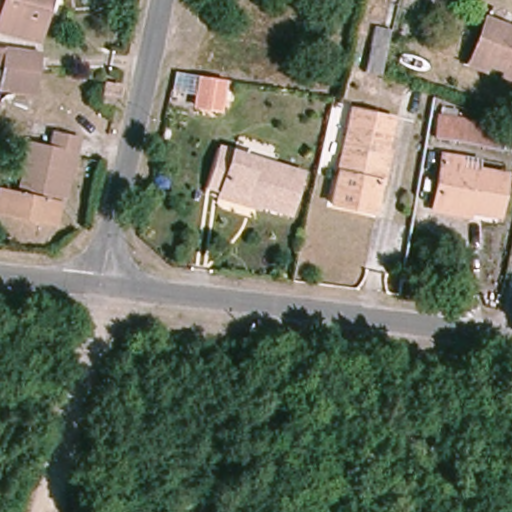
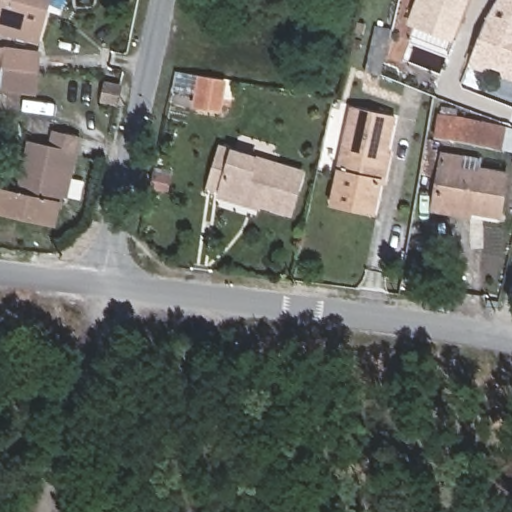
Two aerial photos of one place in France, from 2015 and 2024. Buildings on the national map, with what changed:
unchanged [(0,32),(0,13),(3,2),(0,2),(0,0),(51,0),(48,9),(39,42),(0,32)]
new [(415,0),(469,0),(453,41),(406,23),(415,0)]
new [(485,18),(497,0),(512,0),(512,28),(486,18),(485,18)]
unchanged [(506,71),(488,64),(485,70),(469,63),(486,18),(512,28),(512,78),(504,75),(506,71)]
unchanged [(374,33),(391,38),(381,75),(365,72),(374,33)]
unchanged [(0,87),(0,82),(2,68),(0,68),(0,51),(43,57),(40,74),(38,93),(0,87)]
unchanged [(198,75),(199,76),(223,80),(218,108),(193,104),(198,75)]
unchanged [(100,99),(104,82),(119,85),(117,101),(100,99)]
unchanged [(384,182),(381,181),(375,213),(332,204),(339,169),(352,109),(395,118),(387,151),(390,151),(384,182)]
unchanged [(444,138),(448,113),(466,116),(512,125),(512,150),(478,143),(444,138)]
unchanged [(0,213),(0,189),(18,193),(29,142),(50,147),(53,132),(80,138),(77,153),(68,197),(62,196),(56,225),(0,213)]
unchanged [(217,196),(219,189),(210,187),(221,148),(303,172),(291,214),(260,205),(259,208),(217,196)]
unchanged [(435,205),(443,154),(461,157),(460,166),(507,174),(500,216),(435,205)]

